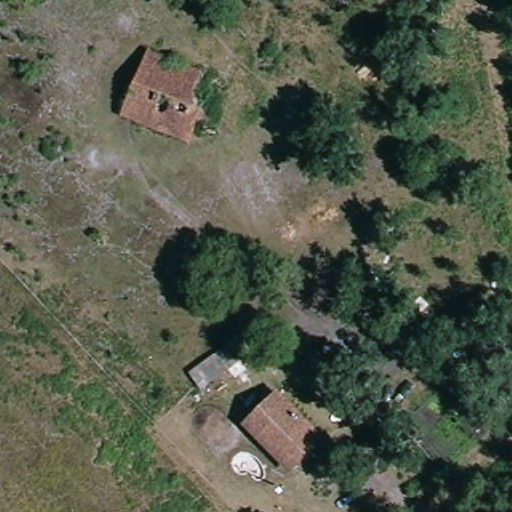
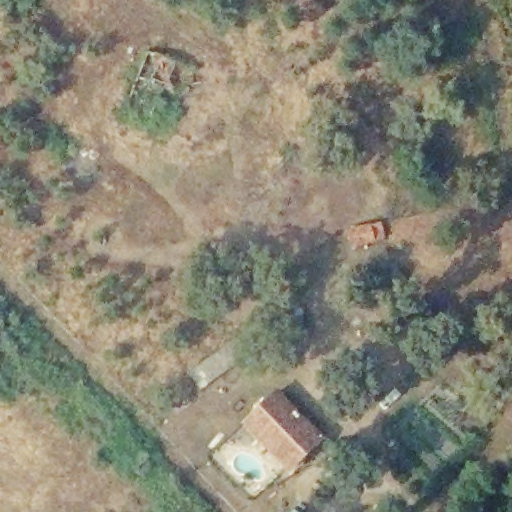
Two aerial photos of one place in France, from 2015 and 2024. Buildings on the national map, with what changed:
new [(120,115),(149,50),(187,66),(175,95),(162,91),(147,129),(120,115)]
demolished [(146,52),(217,74),(199,142),(127,121),(146,52)]
unchanged [(294,469),(251,423),(279,396),(321,441),(294,469)]

